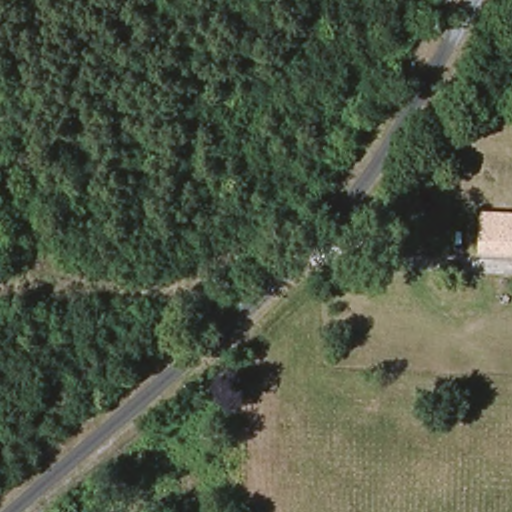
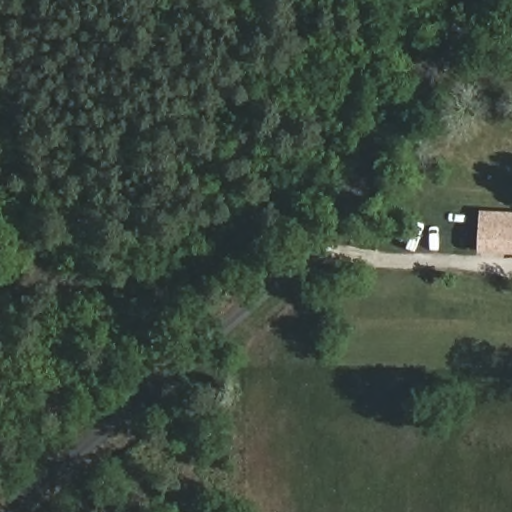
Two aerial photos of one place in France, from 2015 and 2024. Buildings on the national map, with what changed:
unchanged [(482,215),(512,216),(512,259),(478,258),(482,215)]

